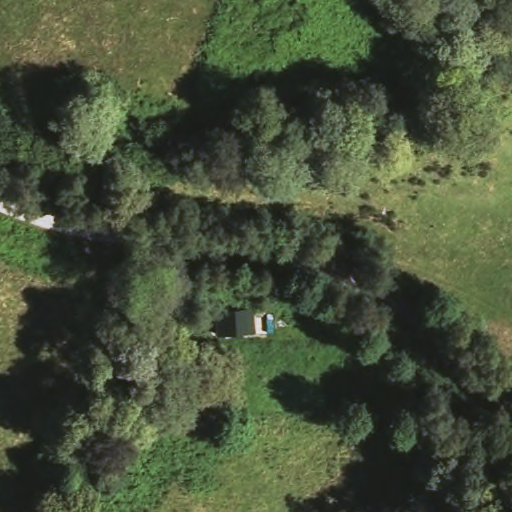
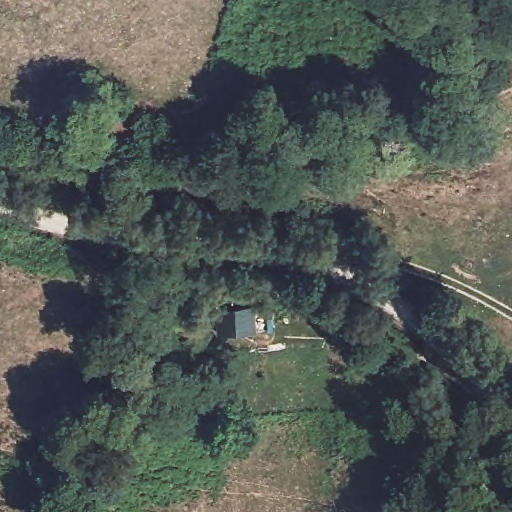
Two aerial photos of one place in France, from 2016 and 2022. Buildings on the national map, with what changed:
unchanged [(250,331),(214,331),(215,312),(249,310),(250,331)]

